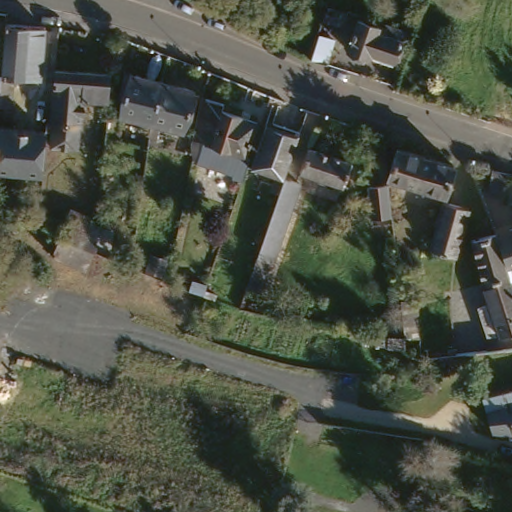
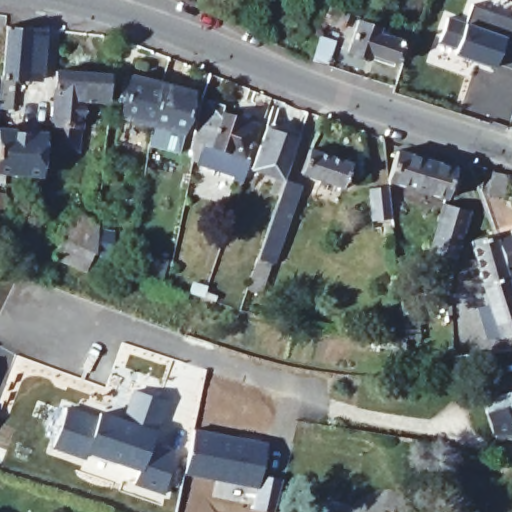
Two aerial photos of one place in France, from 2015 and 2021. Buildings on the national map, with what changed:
unchanged [(345,10),(341,21),(322,16),(325,4),(345,10)]
new [(445,18),(465,25),(472,6),(512,20),(512,50),(510,58),(499,55),(494,68),(453,54),(456,49),(437,42),(445,18)]
unchanged [(412,39),(405,36),(398,56),(375,49),(372,54),(353,48),(364,17),(389,26),(390,21),(414,29),(412,39)]
unchanged [(42,29),(38,78),(2,76),(6,25),(42,29)]
unchanged [(310,60),(317,34),(332,38),(325,64),(310,60)]
unchanged [(61,70),(112,74),(110,99),(88,97),(87,126),(85,126),(84,155),(75,154),(76,148),(57,147),(58,124),(57,124),(61,70)]
unchanged [(162,117),(132,111),(141,70),(171,77),(162,117)]
unchanged [(254,151),(257,152),(249,176),(239,172),(245,148),(221,141),(203,135),(199,150),(157,139),(162,117),(171,77),(203,85),(196,126),(205,128),(214,92),(234,99),(232,107),(263,118),(254,151)]
unchanged [(306,127),(292,172),(295,174),(291,187),(290,189),(289,189),(280,185),(284,171),(260,161),(274,116),(306,127)]
unchanged [(45,172),(10,170),(9,180),(0,179),(0,167),(4,127),(49,131),(45,172)]
unchanged [(360,163),(352,186),(328,179),(323,177),(310,172),(317,149),(322,150),(360,163)]
unchanged [(451,196),(392,178),(401,149),(459,167),(451,196)]
unchanged [(507,175),(502,199),(488,196),(492,172),(507,175)]
unchanged [(294,229),(288,227),(283,243),(278,257),(267,253),(289,189),(290,189),(291,187),(295,174),(309,177),(307,186),(294,229)]
unchanged [(391,219),(375,220),(373,197),(388,196),(391,219)]
unchanged [(437,239),(442,224),(448,201),(450,201),(473,208),(462,255),(436,249),(437,239)]
unchanged [(62,252),(70,235),(69,235),(79,211),(107,224),(106,251),(103,250),(96,266),(62,252)]
unchanged [(491,268),(477,224),(499,218),(502,227),(511,252),(512,257),(512,261),(491,268)]
unchanged [(511,252),(502,227),(512,223),(512,252),(511,252)]
unchanged [(509,347),(510,350),(485,352),(485,353),(472,355),(472,338),(475,337),(485,337),(493,336),(496,336),(497,335),(494,322),(497,322),(486,292),(497,288),(491,268),(512,261),(512,347),(509,347)]
unchanged [(212,297),(202,293),(197,292),(189,290),(192,278),(206,282),(204,286),(215,288),(212,297)]
unchanged [(415,335),(402,336),(401,318),(415,317),(417,334),(415,335)]
unchanged [(444,377),(444,398),(424,398),(424,377),(444,377)]
new [(66,406),(96,416),(97,411),(122,419),(132,388),(163,398),(149,442),(172,451),(163,491),(133,481),(138,467),(86,448),(84,455),(52,444),(66,406)]
unchanged [(497,432),(490,410),(493,409),(491,401),(507,397),(506,390),(512,388),(512,432),(497,432)]
new [(195,431),(269,445),(263,476),(285,480),(277,512),(263,512),(256,511),(261,489),(187,475),(195,431)]

